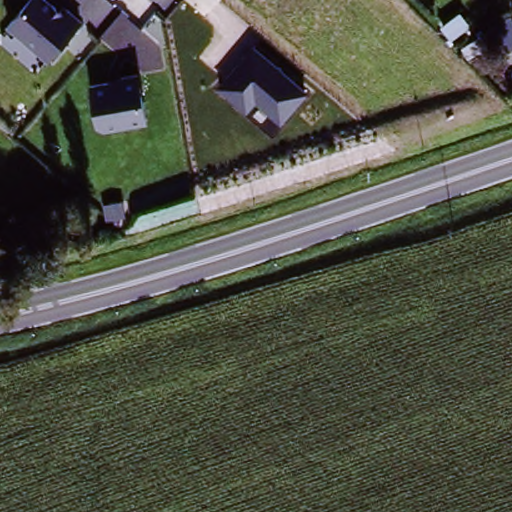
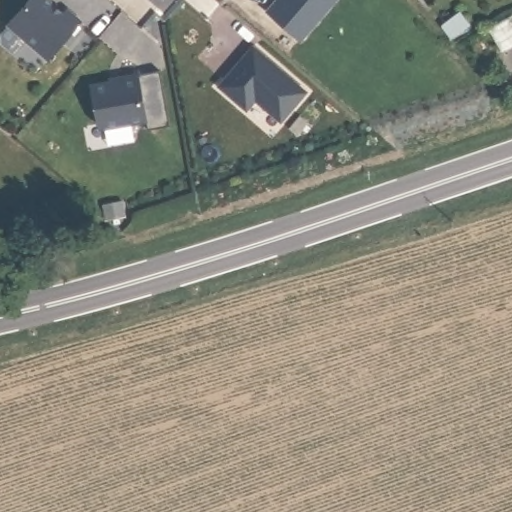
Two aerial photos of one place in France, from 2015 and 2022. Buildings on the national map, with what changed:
unchanged [(49,61),(7,27),(29,0),(48,0),(79,25),(49,61)]
new [(336,0),(303,41),(270,13),(281,0),(336,0)]
unchanged [(462,11),(470,24),(452,36),(444,23),(462,11)]
unchanged [(511,15),(512,17),(512,48),(504,54),(489,28),(511,15)]
unchanged [(282,120),(255,98),(246,110),(218,88),(250,47),(307,91),(282,120)]
unchanged [(138,77),(146,125),(100,132),(91,85),(138,77)]

